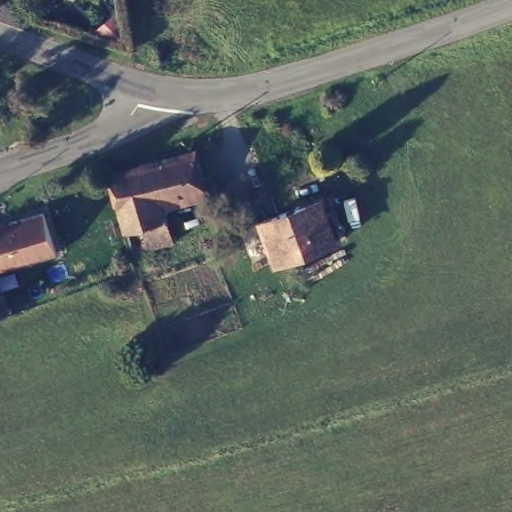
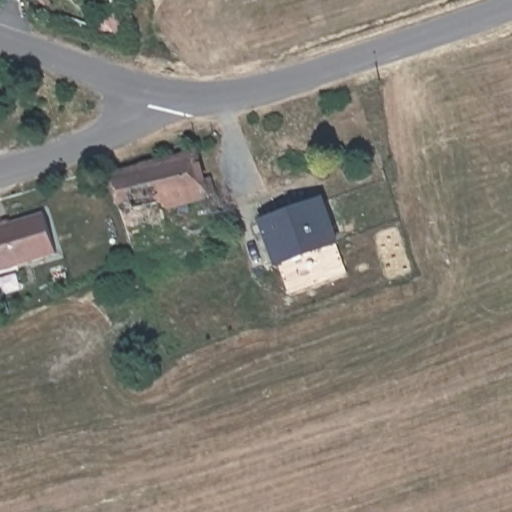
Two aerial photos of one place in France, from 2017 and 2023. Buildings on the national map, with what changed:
unchanged [(197,156),(205,182),(214,181),(217,195),(209,195),(207,191),(165,205),(175,243),(134,255),(113,178),(197,156)]
unchanged [(344,246),(289,264),(275,224),(330,204),(344,246)]
unchanged [(58,253),(0,271),(0,226),(45,212),(58,253)]

